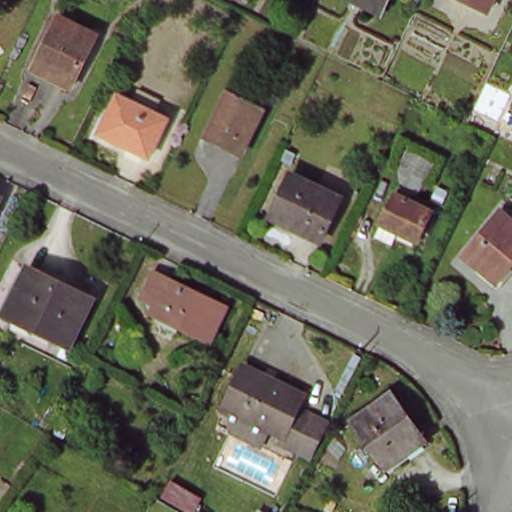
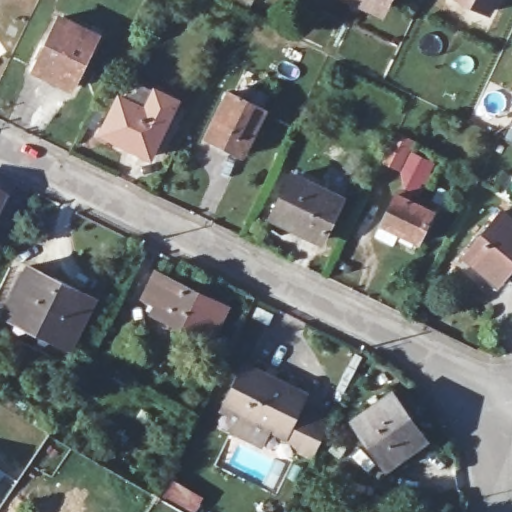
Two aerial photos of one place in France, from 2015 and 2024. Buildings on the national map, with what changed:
unchanged [(383,14),(360,2),(360,0),(391,0),(383,14)]
unchanged [(487,14),(459,0),(495,0),(487,14)]
unchanged [(56,16),(95,36),(71,86),(30,67),(56,16)]
unchanged [(240,152),(207,135),(228,92),(262,108),(240,152)]
unchanged [(152,155),(104,132),(123,95),(170,118),(152,155)]
unchanged [(290,178),(340,201),(320,241),(270,217),(290,178)]
unchanged [(379,232),(385,221),(400,189),(437,208),(422,239),(402,229),(397,241),(379,232)]
unchanged [(502,209),(512,218),(512,262),(496,280),(464,253),(502,209)]
unchanged [(73,342),(9,312),(31,267),(95,298),(73,342)]
unchanged [(162,299),(148,293),(160,269),(232,304),(214,339),(156,311),(162,299)]
unchanged [(290,411),(322,426),(305,462),(270,444),(273,438),(218,411),(233,381),(238,372),(264,384),(296,399),(290,411)]
unchanged [(350,415),(392,392),(422,446),(379,469),(350,415)]

